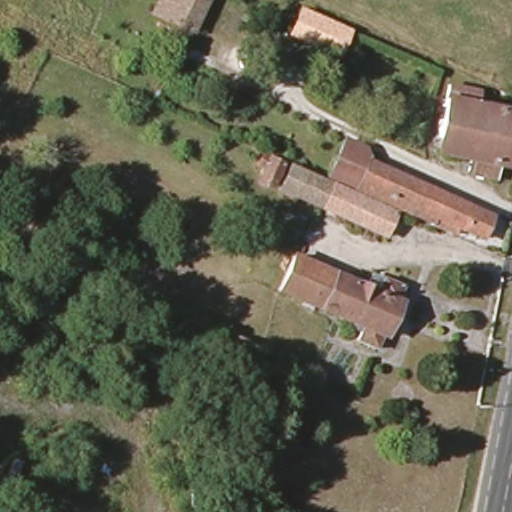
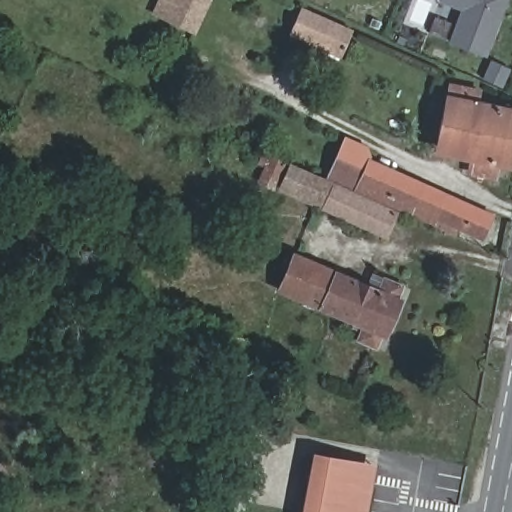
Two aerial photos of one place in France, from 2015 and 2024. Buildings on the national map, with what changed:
unchanged [(191,33),(151,14),(158,0),(203,0),(206,1),(191,33)]
new [(489,53),(453,40),(466,7),(447,0),(510,0),(489,53)]
unchanged [(343,57),(293,36),(304,11),(353,33),(343,57)]
unchanged [(440,136),(449,94),(512,108),(512,165),(502,163),(500,162),(497,174),(472,169),(474,157),(445,151),(437,149),(440,136)]
unchanged [(479,236),(453,224),(451,230),(325,174),(342,137),(362,146),(366,158),(422,183),(418,193),(437,201),(442,192),(489,213),(479,236)]
unchanged [(258,178),(261,171),(264,164),(257,161),(261,151),(281,161),(274,177),(271,184),(258,178)]
unchanged [(381,233),(278,185),(289,163),(392,210),(381,233)]
unchanged [(400,302),(402,303),(387,338),(384,337),(378,351),(359,343),(363,334),(354,330),(357,325),(281,292),(297,257),(380,294),(386,279),(406,288),(400,302)]
unchanged [(265,358),(238,347),(244,332),(271,344),(265,358)]
new [(361,485),(356,512),(305,512),(314,460),(338,465),(339,459),(355,461),(351,483),(361,485)]

